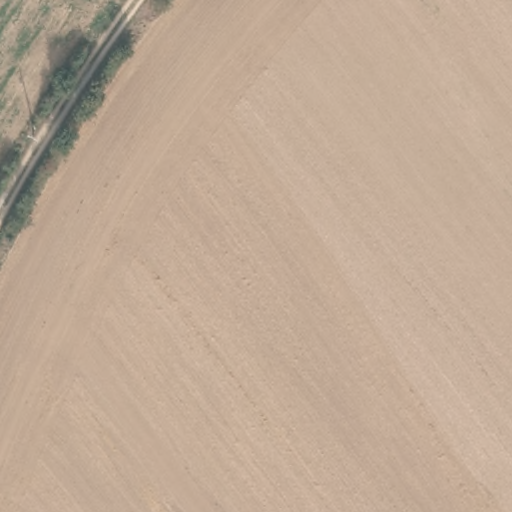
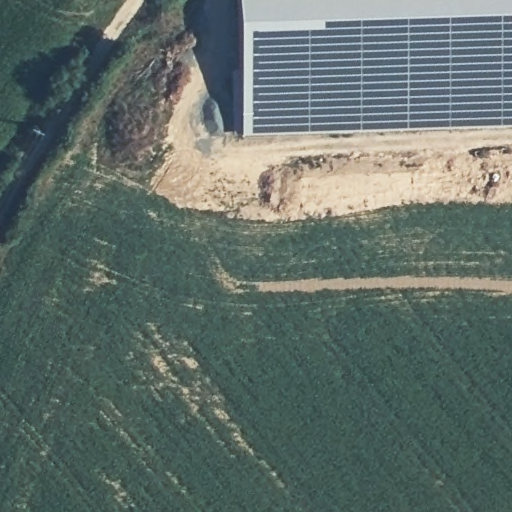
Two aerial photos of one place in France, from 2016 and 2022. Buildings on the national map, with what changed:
new [(241,131),(232,131),(230,69),(239,69),(236,0),(512,0),(512,126),(241,135),(241,131)]

